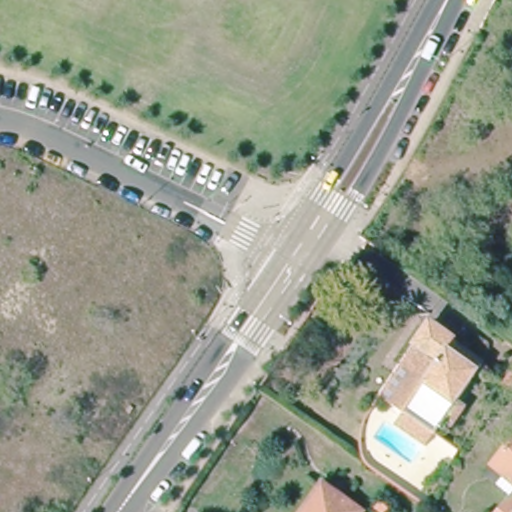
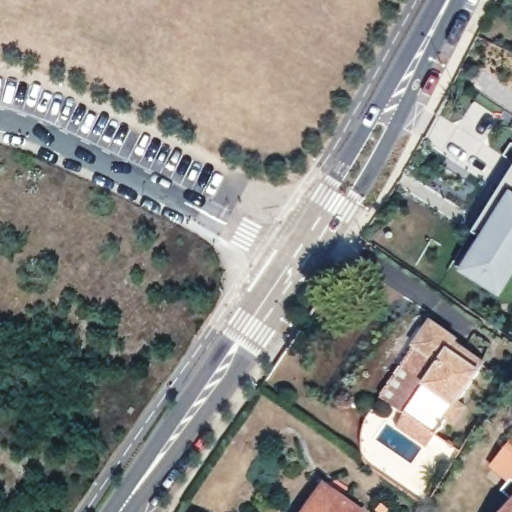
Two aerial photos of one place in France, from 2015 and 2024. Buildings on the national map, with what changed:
new [(500,297),(458,271),(481,236),(473,232),(512,169),(512,278),(500,297)]
unchanged [(481,363),(456,401),(463,406),(450,424),(442,419),(432,436),(379,401),(399,370),(420,385),(432,365),(412,351),(429,327),(481,363)]
unchanged [(490,471),(512,444),(512,490),(490,471)]
unchanged [(327,483),(361,508),(359,512),(307,512),(327,483)]
unchanged [(512,503),(512,512),(505,512),(512,503)]

